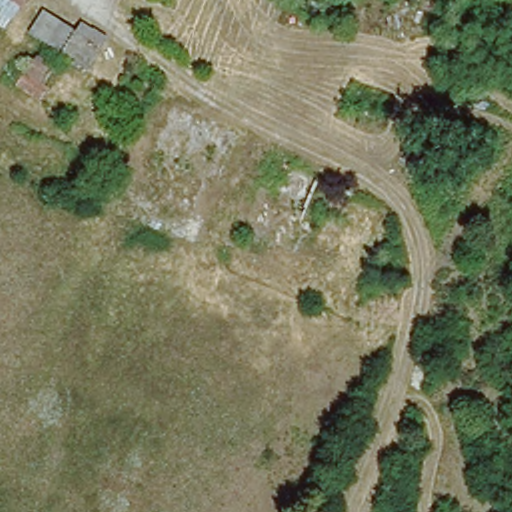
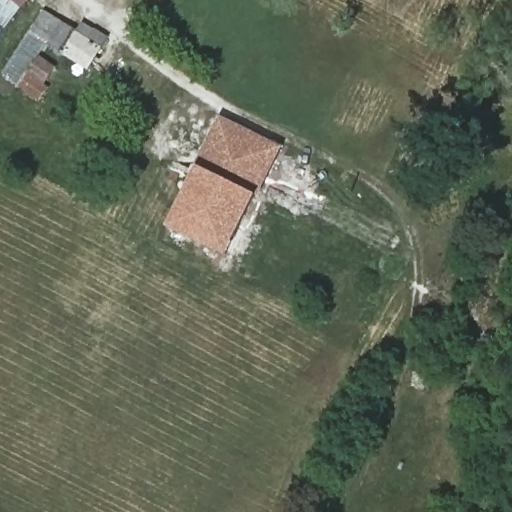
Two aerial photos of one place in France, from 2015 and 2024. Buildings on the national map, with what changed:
unchanged [(20,12),(6,0),(30,0),(20,12)]
unchanged [(403,1),(394,0),(404,0),(403,1)]
unchanged [(31,32),(44,10),(76,31),(82,23),(109,37),(89,74),(31,32)]
unchanged [(58,67),(44,85),(52,89),(41,102),(19,85),(41,54),(58,67)]
unchanged [(358,92),(350,116),(330,106),(336,85),(358,92)]
demolished [(197,112),(223,125),(207,161),(184,148),(185,142),(197,112)]
new [(252,211),(190,181),(219,117),(282,147),(252,211)]
demolished [(207,161),(223,126),(239,132),(219,186),(200,178),(207,161)]
demolished [(153,159),(163,132),(185,142),(184,148),(174,178),(196,187),(187,217),(152,204),(165,164),(153,159)]
demolished [(255,205),(271,165),(314,187),(299,225),(255,205)]
new [(190,181),(249,209),(226,256),(168,227),(190,181)]

